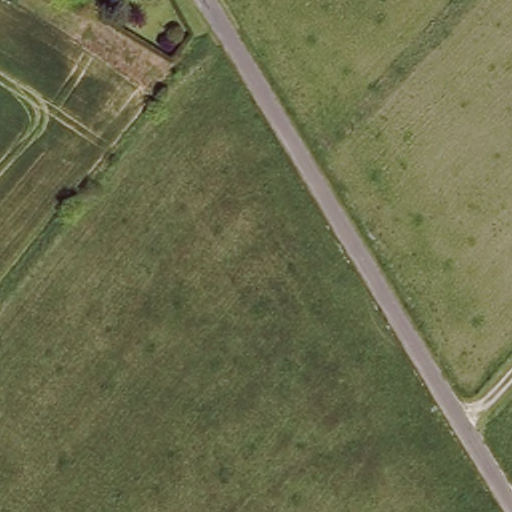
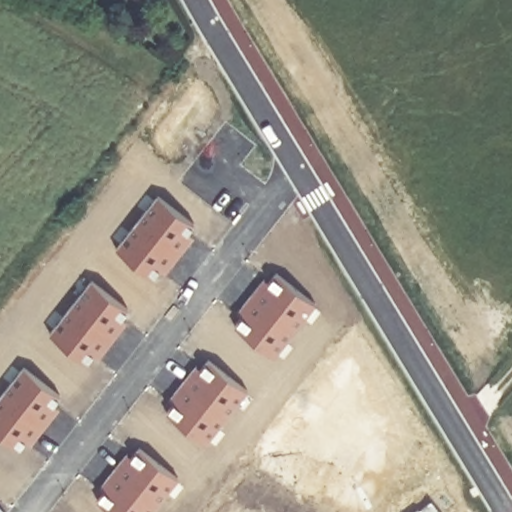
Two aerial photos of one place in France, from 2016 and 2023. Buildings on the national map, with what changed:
new [(157,195),(195,224),(182,239),(187,242),(169,265),(165,262),(152,277),(116,249),(157,195)]
new [(246,311),(241,307),(260,285),(264,287),(276,272),(315,303),(274,357),(234,326),(246,311)]
new [(91,280),(128,308),(116,323),(120,327),(102,350),(98,347),(86,362),(50,333),(91,280)]
new [(178,397),(173,393),(191,371),(196,375),(208,359),(247,390),(205,443),(166,412),(178,397)]
new [(60,395),(48,410),(53,414),(35,437),(30,432),(18,448),(0,434),(0,397),(23,367),(60,395)]
new [(110,485),(105,482),(122,459),(127,462),(139,447),(178,478),(151,512),(112,512),(97,501),(110,485)]

